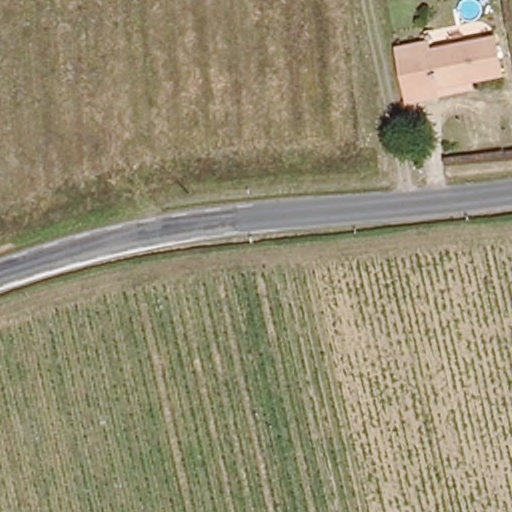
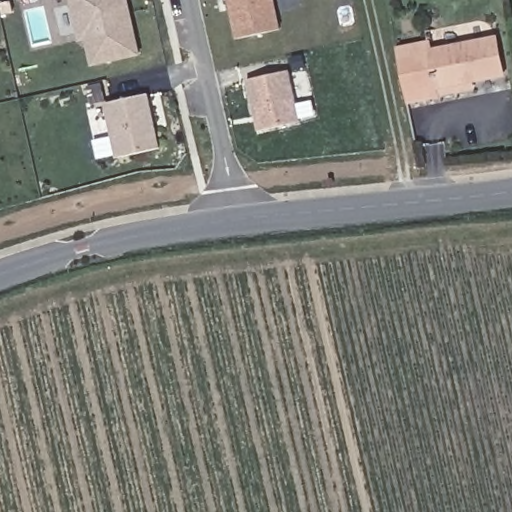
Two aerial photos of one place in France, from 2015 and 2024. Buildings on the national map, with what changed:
new [(142,54),(97,65),(91,39),(85,40),(75,0),(130,0),(142,54)]
new [(284,29),(242,39),(234,0),(277,0),(284,29)]
unchanged [(442,96),(410,102),(399,41),(430,36),(432,50),(500,38),(507,75),(477,80),(478,88),(442,96)]
new [(293,72),(305,122),(263,132),(252,81),(293,72)]
new [(152,95),(164,148),(122,158),(110,105),(152,95)]

